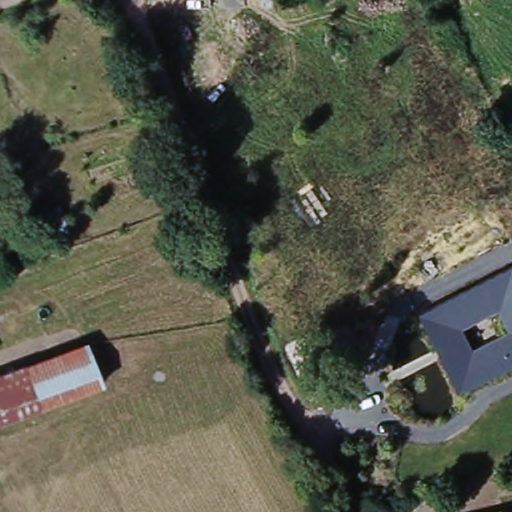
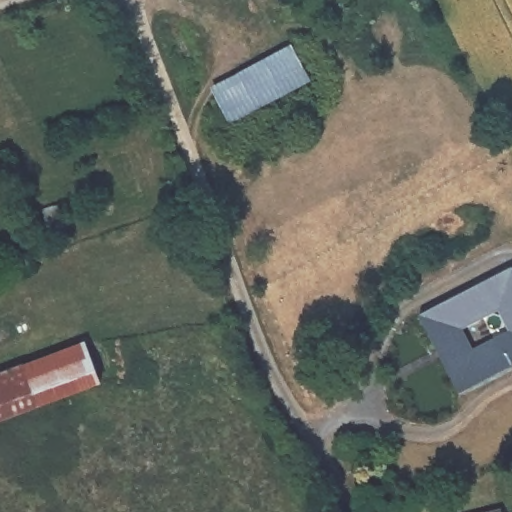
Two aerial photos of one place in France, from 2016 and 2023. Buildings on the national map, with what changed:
new [(213,85),(293,44),(312,80),(230,124),(213,85)]
unchanged [(512,365),(461,392),(421,315),(512,268),(512,365)]
unchanged [(25,366),(82,344),(100,381),(41,404),(25,366)]
unchanged [(41,404),(0,420),(0,376),(25,366),(41,404)]

